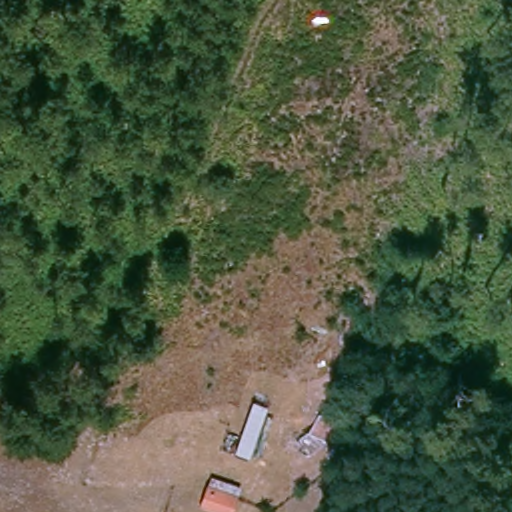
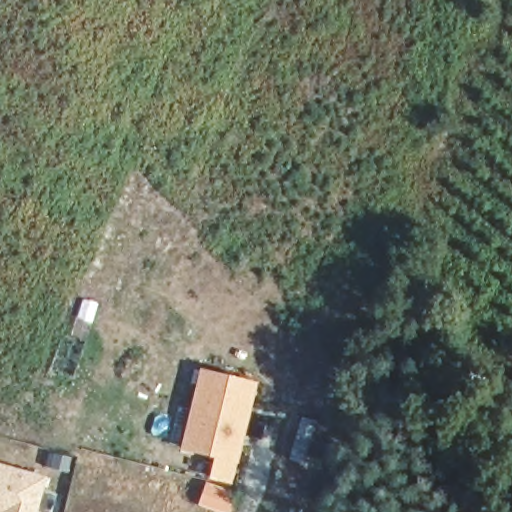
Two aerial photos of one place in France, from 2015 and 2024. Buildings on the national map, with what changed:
new [(181,448),(200,370),(257,383),(237,462),(181,448)]
new [(45,478),(36,512),(0,512),(0,466),(45,478)]
demolished [(205,475),(219,480),(214,490),(205,512),(192,507),(199,490),(205,475)]

